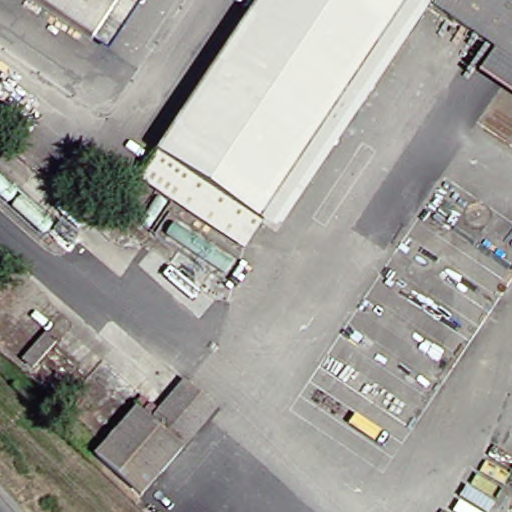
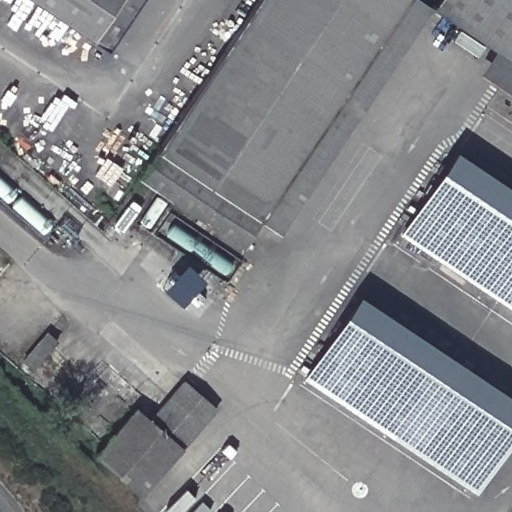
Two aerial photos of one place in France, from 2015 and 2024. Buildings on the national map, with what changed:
unchanged [(34,0),(119,0),(92,39),(34,0)]
unchanged [(253,0),(402,0),(322,121),(218,51),(253,0)]
unchanged [(424,5),(416,0),(428,0),(424,5)]
unchanged [(428,7),(433,0),(512,0),(512,64),(490,49),(428,7)]
new [(492,50),(512,64),(512,96),(479,74),(492,50)]
unchanged [(322,121),(256,221),(152,151),(151,150),(218,51),(322,121)]
unchanged [(239,247),(135,177),(152,151),(256,221),(239,247)]
new [(512,190),(512,308),(403,235),(458,154),(512,190)]
unchanged [(49,233),(56,226),(64,234),(57,240),(49,233)]
new [(512,399),(512,433),(473,491),(307,379),(361,298),(512,399)]
unchanged [(32,370),(21,360),(46,331),(58,341),(32,370)]
unchanged [(174,381),(206,409),(171,448),(139,420),(174,381)]
unchanged [(130,494),(86,455),(126,409),(171,448),(130,494)]

